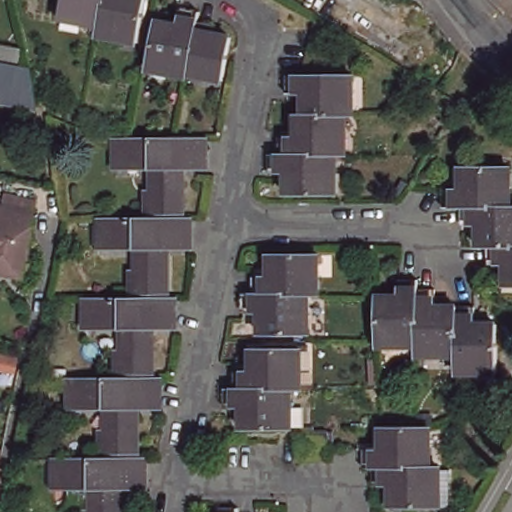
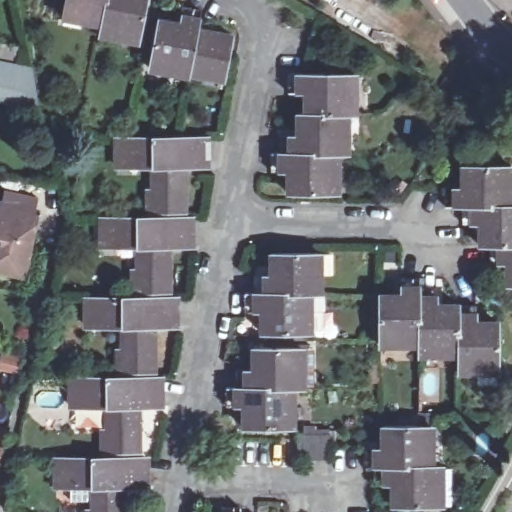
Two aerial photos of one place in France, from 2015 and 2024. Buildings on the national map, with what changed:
unchanged [(119,44),(100,40),(101,32),(85,29),(63,24),(64,21),(68,0),(149,0),(141,44),(140,49),(119,44)]
unchanged [(151,66),(159,22),(182,26),(185,8),(202,12),(200,22),(217,26),(216,36),(234,39),(226,81),(189,74),(188,78),(172,74),(150,70),(151,66)]
unchanged [(0,98),(0,62),(0,54),(2,45),(25,49),(21,66),(34,69),(40,106),(0,98)]
unchanged [(296,194),(296,172),(278,172),(278,154),(286,154),(286,138),(304,137),(304,116),(312,115),(312,94),(295,94),(295,76),(362,76),(362,93),(362,115),(357,116),(356,116),(355,137),(355,155),(346,154),(345,172),(345,194),(340,194),(296,194)]
unchanged [(422,80),(431,89),(423,97),(414,89),(422,80)]
unchanged [(209,136),(209,163),(187,163),(187,207),(150,208),(149,187),(155,187),(154,163),(117,164),(116,136),(209,136)]
unchanged [(508,281),(507,259),(490,259),(491,242),(481,242),(481,220),(464,219),(464,202),(447,203),(447,185),(464,185),(464,163),(507,163),(512,163),(512,281),(508,281)]
unchanged [(405,180),(410,183),(401,199),(395,194),(405,180)]
unchanged [(41,220),(27,283),(0,278),(0,226),(3,213),(41,220)]
unchanged [(195,215),(195,242),(172,243),(172,287),(134,288),(134,267),(140,267),(139,243),(102,244),(102,216),(195,215)]
unchanged [(309,329),(264,330),(263,307),(246,307),(246,288),(256,288),(256,271),(274,270),(273,250),(318,250),(322,250),(322,271),(322,290),(312,289),(312,306),(312,329),(309,329)]
unchanged [(482,374),(465,373),(465,358),(442,357),(426,356),(426,348),(407,348),(384,347),(385,342),(385,297),(407,297),(407,280),(426,280),(426,290),(444,291),(444,307),(482,307),(482,325),(504,325),(504,370),(503,374),(482,374)]
unchanged [(179,295),(179,322),(156,323),(156,366),(120,367),(119,347),(124,347),(124,323),(88,323),(88,295),(179,295)]
unchanged [(290,425),(246,425),(246,402),(227,402),(228,384),(237,384),(236,366),(256,366),(255,345),(300,345),(304,345),(305,366),(304,384),(296,385),(295,402),(295,425),(290,425)]
unchanged [(163,375),(163,402),(142,402),(142,447),(104,448),(105,426),(109,426),(109,403),(72,403),(72,376),(163,375)]
unchanged [(439,508),(394,508),(394,485),(377,485),(377,469),(367,469),(367,450),(385,448),(385,428),(430,427),(435,428),(434,449),(434,468),(444,468),(444,485),(444,508),(439,508)]
unchanged [(127,483),(127,512),(89,512),(89,506),(94,506),(94,497),(72,497),(72,484),(58,484),(57,456),(149,454),(150,482),(127,483)]
unchanged [(238,508),(238,512),(218,512),(219,509),(238,508)]

